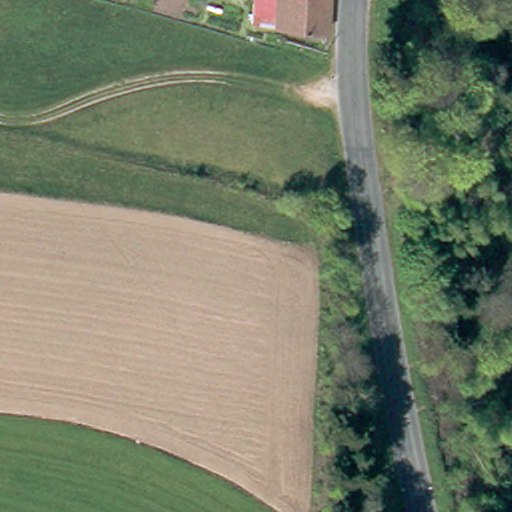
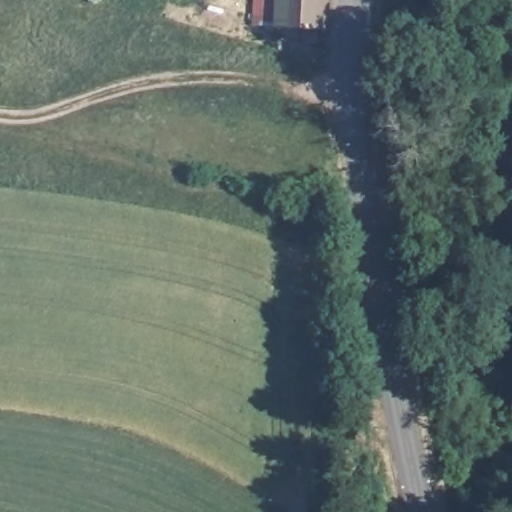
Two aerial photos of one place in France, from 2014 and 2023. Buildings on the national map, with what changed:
unchanged [(267,20),(246,16),(246,0),(328,0),(325,31),(267,20)]

